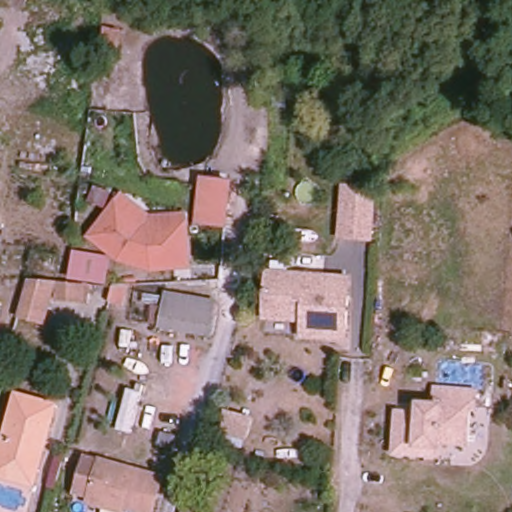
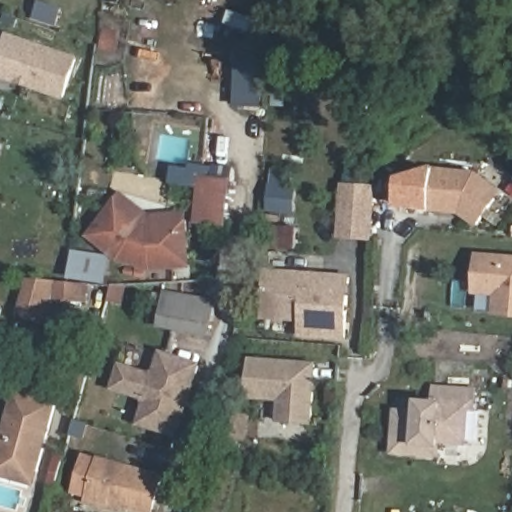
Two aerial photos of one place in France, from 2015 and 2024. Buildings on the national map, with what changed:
new [(0,80),(0,52),(6,32),(79,57),(64,101),(0,80)]
new [(478,228),(459,214),(427,212),(432,167),(477,171),(504,192),(478,228)]
unchanged [(234,179),(229,229),(195,226),(200,175),(234,179)]
unchanged [(343,187),(373,189),(369,239),(339,236),(343,187)]
unchanged [(186,212),(189,267),(149,270),(117,258),(86,234),(120,190),(151,214),(186,212)]
unchanged [(71,280),(75,251),(112,258),(105,285),(71,280)]
new [(492,317),(494,296),(472,295),(476,253),(512,256),(512,318),(492,317)]
unchanged [(339,337),(322,336),(296,334),(298,311),(288,310),(287,318),(258,316),(262,271),(325,276),(344,277),(339,337)]
unchanged [(56,283),(83,287),(81,305),(54,303),(45,327),(17,319),(29,277),(56,283)]
unchanged [(166,290),(218,300),(210,339),(158,328),(166,290)]
new [(110,391),(118,362),(149,373),(153,370),(159,351),(201,364),(178,437),(136,425),(143,405),(140,400),(110,391)]
new [(248,358),(316,363),(313,425),(276,423),(277,402),(247,400),(248,358)]
unchanged [(436,388),(475,391),(474,408),(469,407),(466,443),(439,442),(438,455),(394,452),(396,412),(419,413),(419,404),(435,404),(436,388)]
unchanged [(56,411),(38,478),(0,468),(0,464),(18,401),(56,411)]
unchanged [(227,413),(251,422),(244,440),(220,432),(227,413)]
unchanged [(87,454),(163,476),(153,512),(134,512),(76,495),(87,454)]
unchanged [(205,512),(183,512),(187,499),(207,505),(205,512)]

